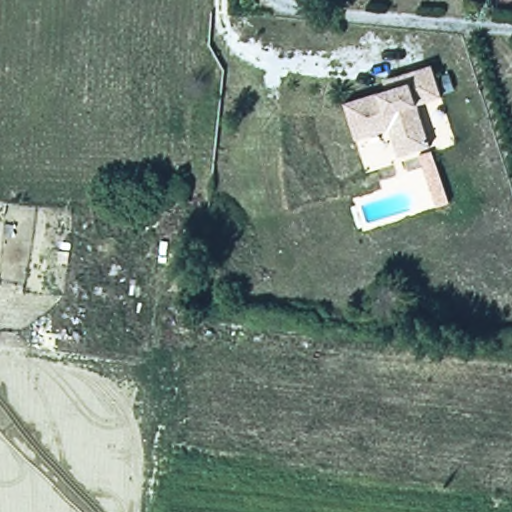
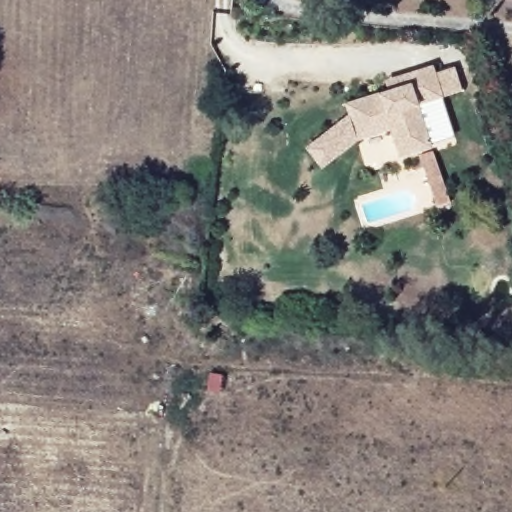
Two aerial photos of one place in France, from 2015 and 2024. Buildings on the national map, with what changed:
unchanged [(376,83),(427,66),(430,74),(453,67),(460,90),(437,97),(436,95),(415,102),(428,145),(400,154),(392,130),(359,141),(358,138),(349,111),(346,103),(380,92),(376,83)]
new [(358,138),(321,167),(305,147),(349,111),(358,138)]

